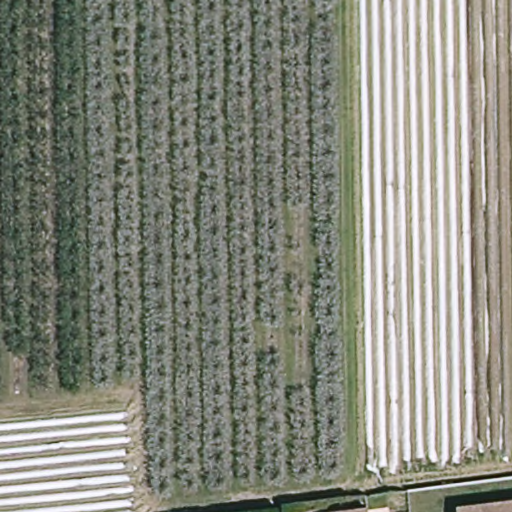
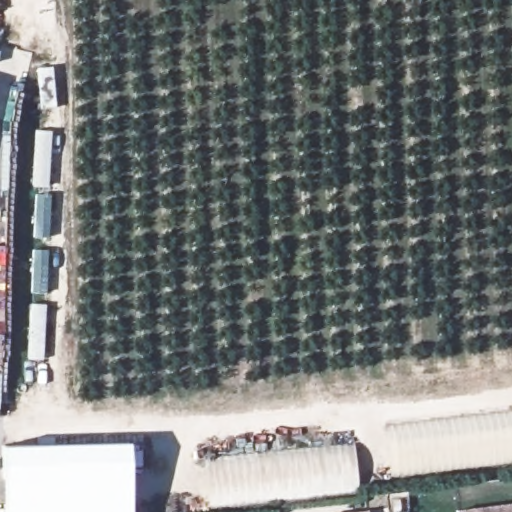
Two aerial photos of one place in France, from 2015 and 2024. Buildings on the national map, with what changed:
new [(385,426),(512,412),(512,464),(391,477),(385,426)]
new [(128,443),(130,512),(4,512),(3,446),(128,443)]
new [(355,443),(361,492),(209,509),(204,458),(355,443)]
unchanged [(460,508),(512,500),(512,512),(460,512),(460,508)]
unchanged [(372,511),(372,512),(363,512),(372,511)]

